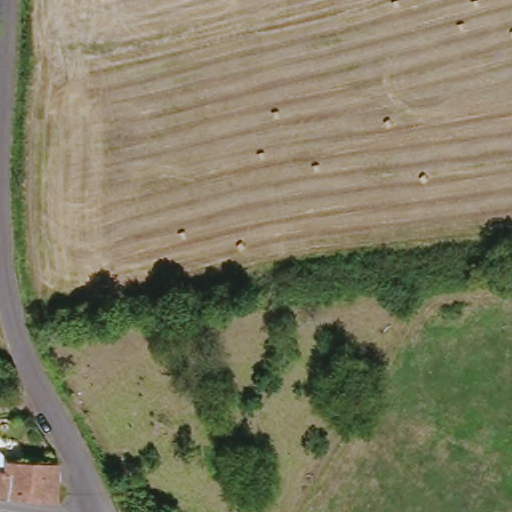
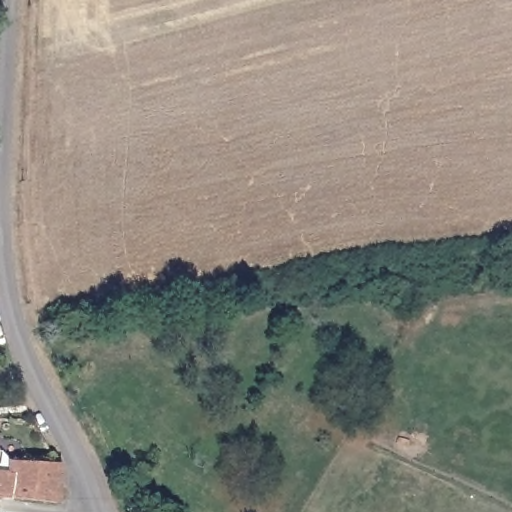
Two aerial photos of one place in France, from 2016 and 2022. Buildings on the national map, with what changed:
unchanged [(4,458),(57,460),(57,500),(0,494),(0,453),(4,458)]

